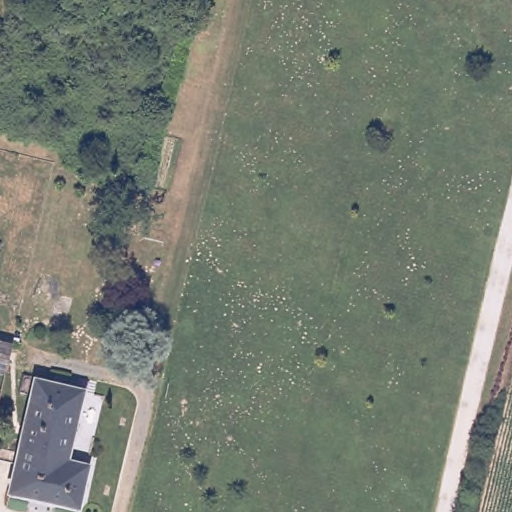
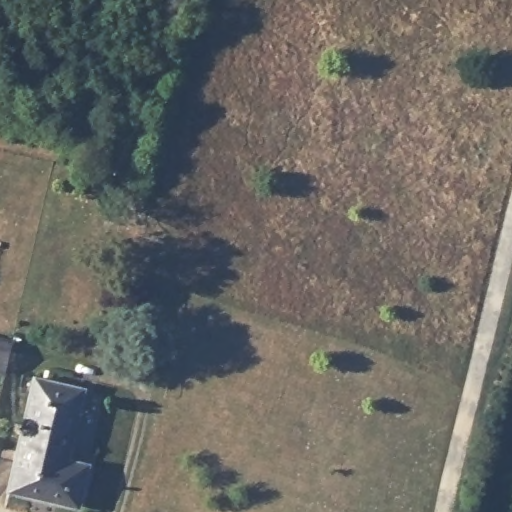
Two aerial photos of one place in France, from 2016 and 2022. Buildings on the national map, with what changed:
unchanged [(6,375),(0,374),(0,339),(17,342),(6,375)]
unchanged [(4,494),(34,373),(84,385),(66,453),(90,459),(78,512),(4,494)]

